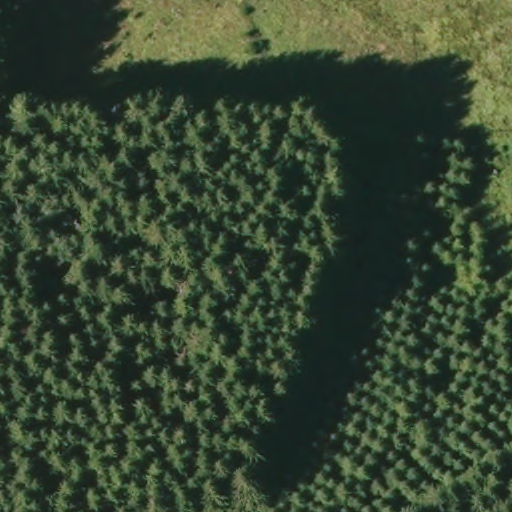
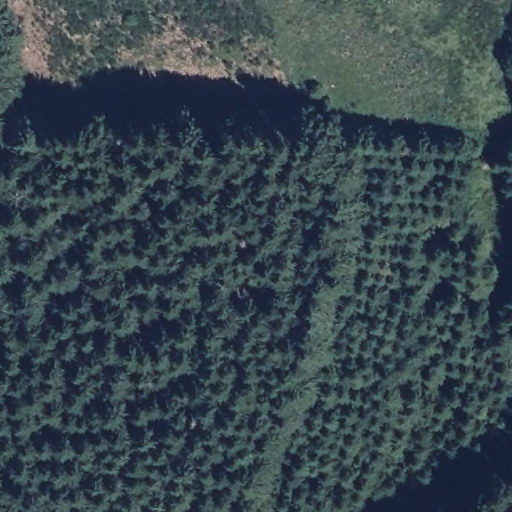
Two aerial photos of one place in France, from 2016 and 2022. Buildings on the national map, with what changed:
[]

